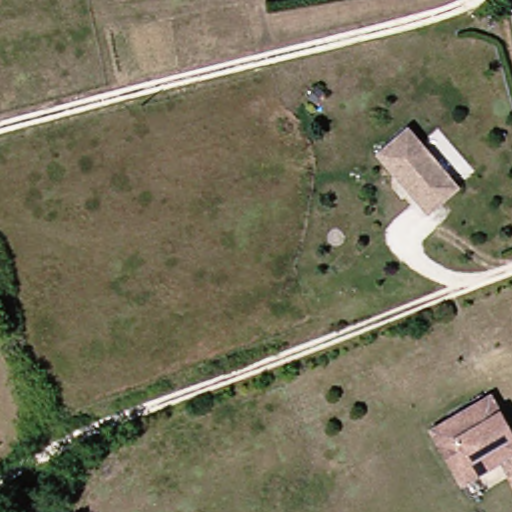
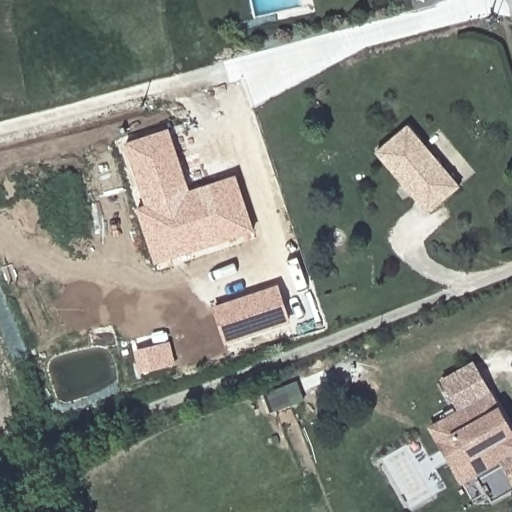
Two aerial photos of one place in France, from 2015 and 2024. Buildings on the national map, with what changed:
unchanged [(465,187),(430,215),(377,152),(412,123),(465,187)]
new [(137,209),(146,206),(124,142),(169,129),(190,191),(236,176),(255,232),(155,265),(137,209)]
new [(212,307),(277,286),(291,322),(225,346),(212,307)]
new [(177,366),(140,375),(134,351),(172,342),(177,366)]
new [(473,362),(492,397),(460,415),(441,380),(473,362)]
unchanged [(430,432),(441,426),(492,397),(512,436),(512,456),(470,477),(457,485),(430,432)]

